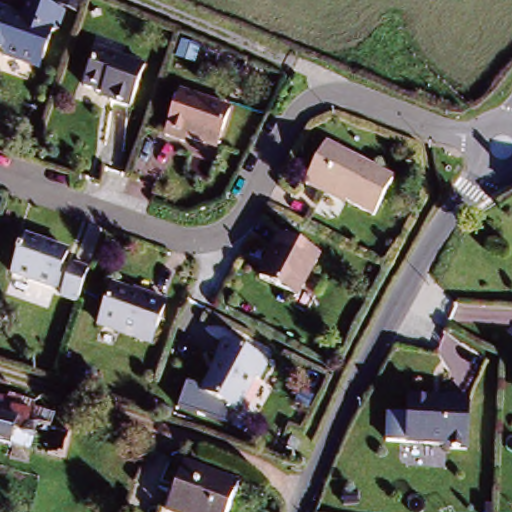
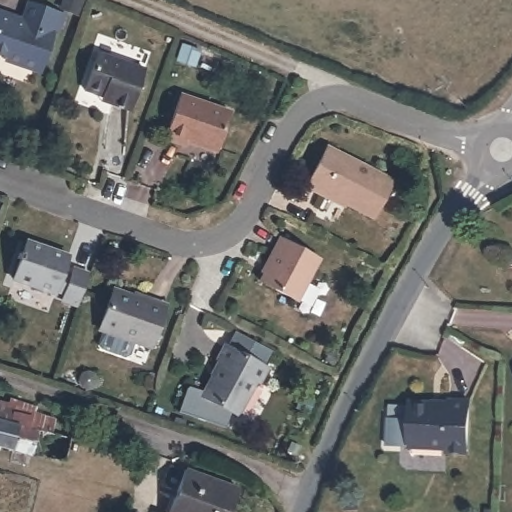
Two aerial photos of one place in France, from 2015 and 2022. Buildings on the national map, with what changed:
unchanged [(17,19),(16,22),(26,25),(33,5),(71,16),(67,30),(59,34),(55,33),(51,47),(54,51),(47,73),(10,62),(10,59),(0,56),(0,20),(1,15),(17,19)]
unchanged [(104,88),(85,82),(96,44),(147,58),(134,102),(113,95),(103,92),(104,88)]
unchanged [(230,104),(217,144),(185,133),(184,138),(165,132),(179,87),(230,104)]
unchanged [(322,141),(393,176),(375,215),(320,188),(319,190),(303,182),(322,141)]
unchanged [(278,232),(320,252),(299,296),(260,277),(274,248),(272,247),(278,232)]
unchanged [(77,308),(61,303),(63,296),(54,293),(53,296),(10,283),(21,245),(65,258),(60,274),(68,277),(71,270),(86,275),(77,308)]
unchanged [(148,298),(149,295),(166,301),(152,343),(99,325),(112,285),(148,298)]
unchanged [(270,363),(262,379),(258,378),(242,414),(205,395),(221,359),(218,358),(225,342),(270,363)]
unchanged [(324,348),(333,353),(327,365),(318,360),(324,348)]
unchanged [(6,401),(31,406),(30,413),(38,415),(33,436),(59,443),(54,464),(0,452),(0,406),(5,407),(6,401)]
unchanged [(456,407),(456,403),(476,403),(475,456),(455,456),(455,452),(416,451),(417,406),(456,407)]
unchanged [(192,416),(187,428),(165,420),(170,407),(192,416)]
unchanged [(273,463),(280,467),(276,474),(270,470),(273,463)]
unchanged [(230,512),(165,512),(181,470),(238,494),(230,512)]

